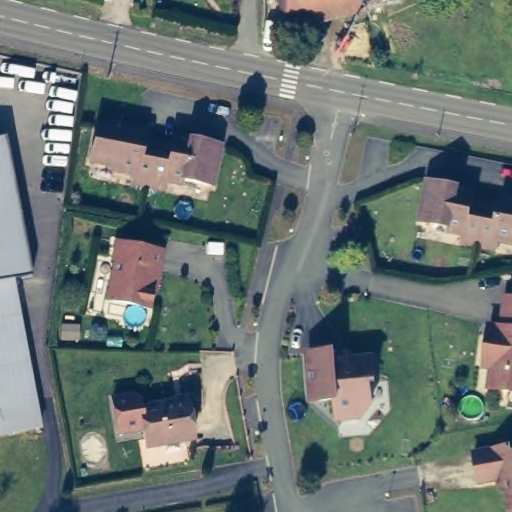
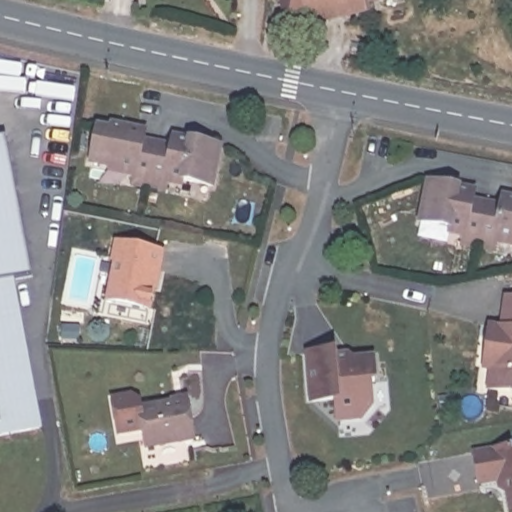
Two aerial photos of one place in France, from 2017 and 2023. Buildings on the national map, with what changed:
unchanged [(288,24),(282,0),(402,0),(288,24)]
unchanged [(162,186),(160,198),(128,191),(130,179),(87,170),(93,136),(107,139),(108,134),(130,138),(140,140),(138,150),(167,156),(169,146),(179,148),(215,156),(207,195),(162,186)]
unchanged [(0,283),(0,137),(5,135),(35,273),(14,281),(0,283)]
unchanged [(469,200),(467,210),(497,216),(499,206),(508,208),(512,209),(512,250),(492,246),(490,258),(458,252),(460,239),(415,231),(424,191),(460,198),(469,200)]
unchanged [(160,256),(155,284),(152,283),(151,293),(153,293),(150,312),(108,304),(116,265),(114,265),(117,247),(160,256)]
unchanged [(40,424),(0,433),(0,283),(14,281),(40,424)]
unchanged [(507,326),(511,296),(512,297),(512,390),(494,388),(497,368),(489,367),(490,357),(495,325),(507,326)]
unchanged [(336,366),(348,365),(354,370),(373,368),(375,391),(370,391),(372,413),(360,426),(337,428),(336,409),(312,410),(309,363),(335,361),(336,366)]
unchanged [(168,413),(180,411),(187,446),(140,454),(135,429),(117,432),(112,399),(142,393),(146,414),(167,410),(168,413)]
unchanged [(511,451),(512,456),(512,512),(510,512),(505,483),(479,487),(474,458),(511,451)]

